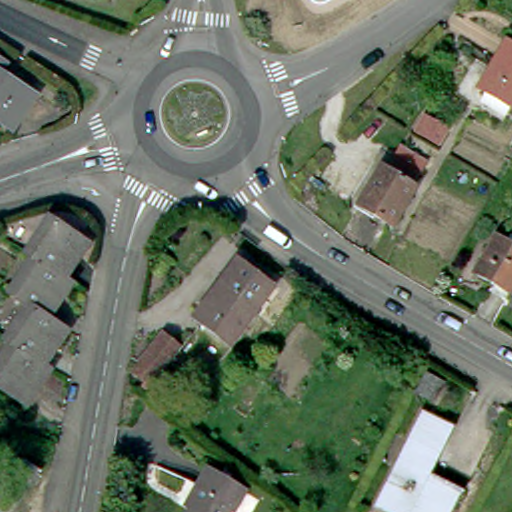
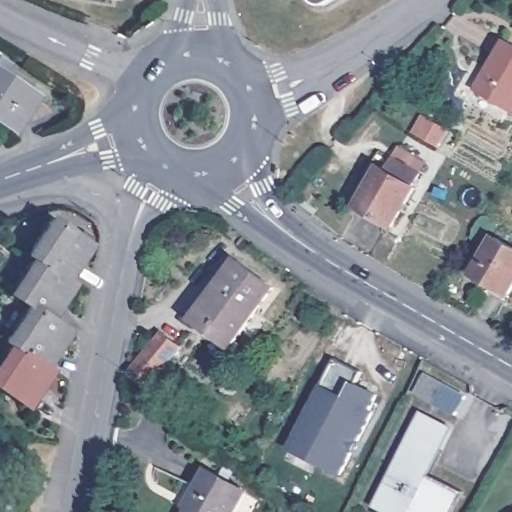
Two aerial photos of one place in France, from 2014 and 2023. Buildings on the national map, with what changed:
unchanged [(477,89),(507,40),(512,42),(512,110),(477,89)]
unchanged [(5,60),(0,67),(0,58),(5,60)]
unchanged [(12,86),(16,80),(34,93),(11,126),(0,119),(0,79),(12,86)]
unchanged [(377,172),(385,176),(392,165),(413,176),(405,189),(409,191),(385,227),(354,211),(377,172)]
unchanged [(48,217),(85,242),(62,278),(31,257),(24,252),(48,217)]
unchanged [(499,300),(484,290),(488,284),(470,273),(492,236),(497,228),(512,237),(512,284),(506,295),(503,293),(499,300)]
unchanged [(68,281),(45,317),(27,305),(7,291),(31,257),(62,278),(68,281)]
unchanged [(238,260),(275,288),(259,310),(240,297),(221,283),(238,260)]
unchanged [(240,297),(259,310),(233,346),(195,319),(221,283),(240,297)]
unchanged [(65,331),(42,365),(10,344),(4,340),(27,305),(45,317),(65,331)]
unchanged [(164,335),(180,348),(150,388),(133,373),(164,335)]
unchanged [(49,370),(25,406),(0,389),(0,359),(10,344),(42,365),(49,370)]
new [(361,370),(354,381),(379,395),(371,409),(374,410),(341,475),(289,449),(323,385),(337,358),(361,370)]
unchanged [(447,382),(437,401),(419,391),(429,372),(447,382)]
unchanged [(442,431),(430,454),(434,457),(423,477),(454,493),(444,512),(382,512),(372,507),(417,418),(442,431)]
unchanged [(3,490),(23,458),(40,469),(20,501),(14,512),(0,512),(0,494),(3,490)]
unchanged [(245,492),(234,511),(230,510),(229,512),(191,512),(197,502),(191,498),(206,471),(245,492)]

